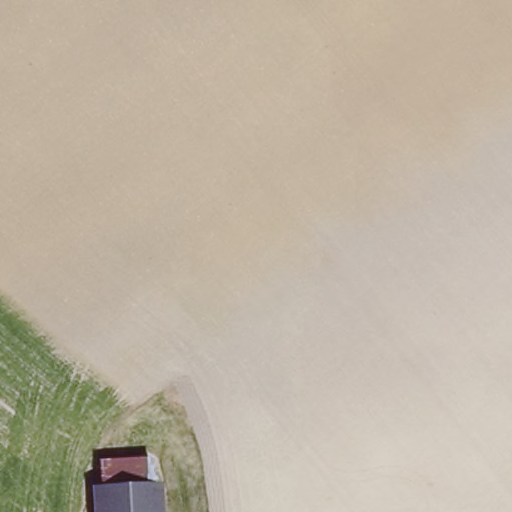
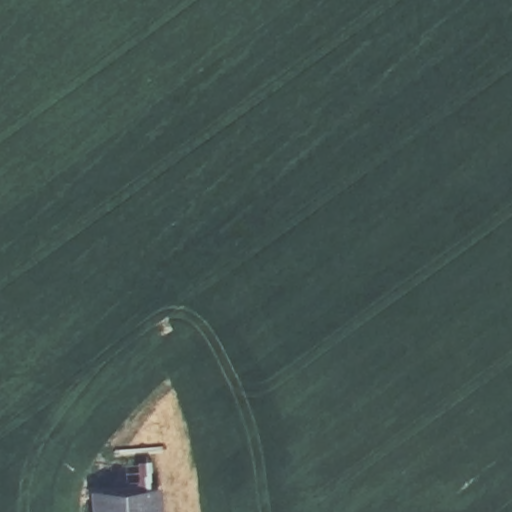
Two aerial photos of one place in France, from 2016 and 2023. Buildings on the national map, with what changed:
unchanged [(149,463),(153,512),(104,512),(100,467),(149,463)]

